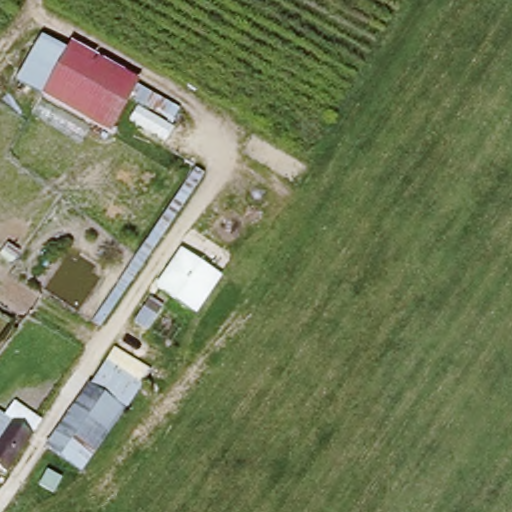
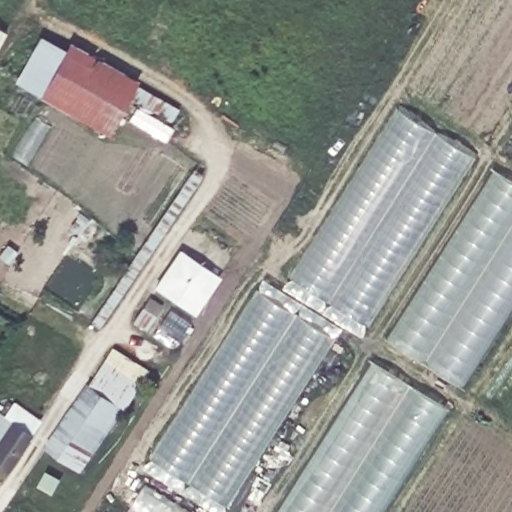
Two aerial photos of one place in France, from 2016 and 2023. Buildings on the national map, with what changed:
unchanged [(19,78),(41,34),(65,46),(42,92),(19,78)]
unchanged [(65,46),(70,36),(135,77),(204,121),(197,135),(135,96),(107,133),(42,92),(65,46)]
new [(367,323),(292,275),(397,105),(475,156),(367,323)]
unchanged [(204,177),(104,329),(87,320),(192,167),(204,177)]
new [(462,386),(386,337),(494,169),(512,180),(512,309),(462,386)]
unchanged [(155,288),(180,252),(222,277),(195,313),(155,288)]
new [(228,505),(150,455),(257,287),(336,338),(228,505)]
unchanged [(113,346),(149,368),(79,471),(44,443),(113,346)]
new [(277,512),(372,359),(449,409),(382,512),(277,512)]
unchanged [(12,462),(0,455),(0,435),(17,409),(38,423),(12,462)]

